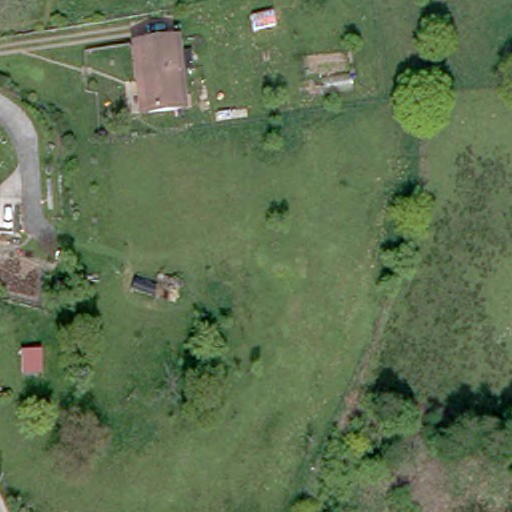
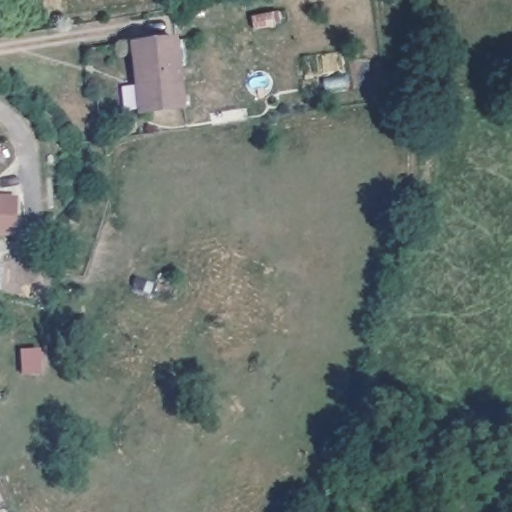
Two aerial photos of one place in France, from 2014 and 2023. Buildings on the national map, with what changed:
unchanged [(140,78),(137,44),(177,39),(185,105),(162,107),(150,109),(142,110),(140,78)]
new [(17,236),(0,235),(0,195),(18,195),(17,236)]

